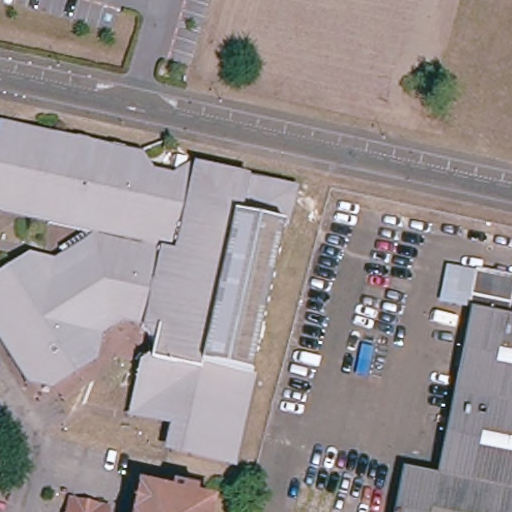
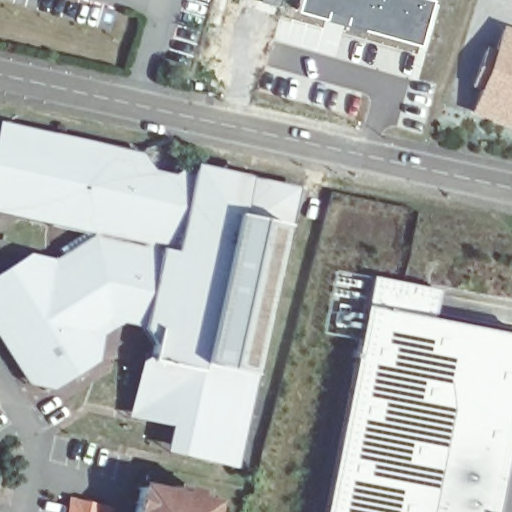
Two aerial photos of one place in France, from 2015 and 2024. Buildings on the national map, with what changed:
new [(277,6),(259,0),(279,0),(277,6)]
new [(419,43),(345,22),(344,25),(323,19),(324,15),(298,9),(301,0),(431,0),(419,43)]
new [(475,85),(487,51),(496,54),(505,30),(512,32),(512,125),(475,112),(483,88),(475,85)]
unchanged [(4,134),(122,160),(131,172),(149,176),(161,171),(165,181),(177,184),(184,175),(275,198),(284,213),(239,396),(222,467),(165,454),(169,437),(184,430),(177,417),(160,425),(146,423),(131,405),(141,375),(146,375),(150,361),(131,322),(114,334),(91,369),(51,393),(31,388),(0,342),(0,278),(19,267),(32,271),(81,232),(0,214),(0,136),(4,134)]
demolished [(512,281),(512,299),(508,319),(512,319),(512,394),(456,381),(477,275),(512,281)]
new [(430,319),(512,336),(512,419),(493,512),(323,512),(365,306),(371,277),(437,289),(430,319)]
demolished [(512,512),(398,512),(406,473),(436,479),(456,381),(512,394),(512,512)]
unchanged [(170,497),(174,487),(200,493),(197,503),(211,506),(209,512),(139,512),(144,490),(170,497)]
unchanged [(107,509),(106,512),(71,512),(72,502),(107,509)]

